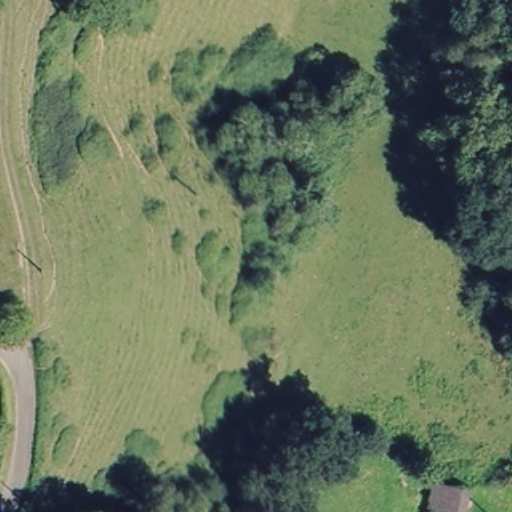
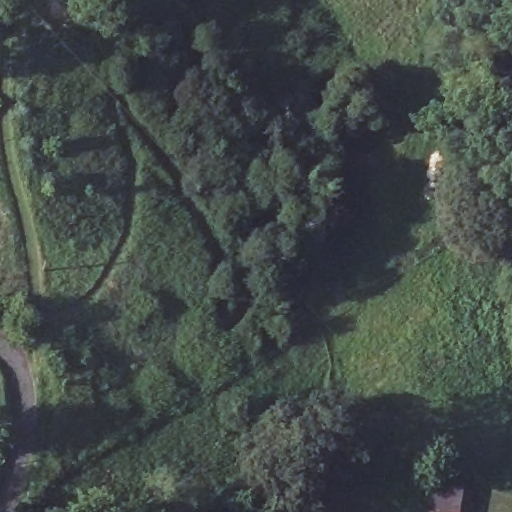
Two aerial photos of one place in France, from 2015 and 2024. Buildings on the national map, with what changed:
unchanged [(461,502),(460,512),(424,512),(426,493),(435,493),(462,495),(461,502)]

